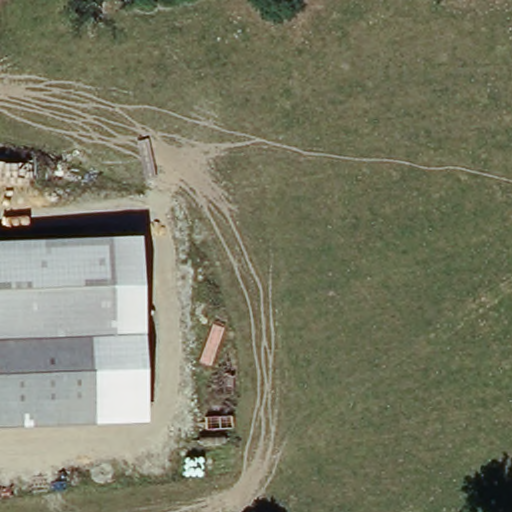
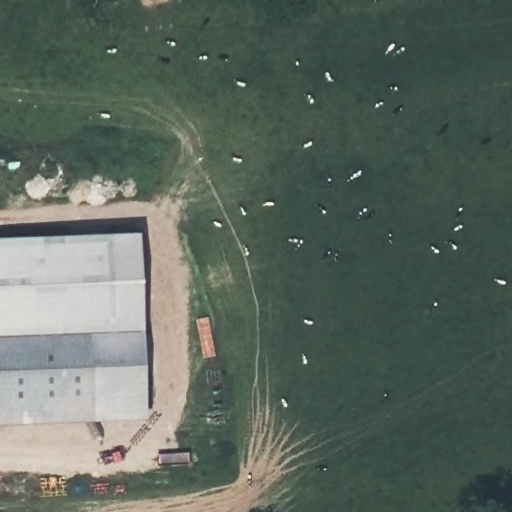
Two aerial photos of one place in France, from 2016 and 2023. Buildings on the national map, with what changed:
unchanged [(114,333),(110,234),(141,233),(148,421),(0,428),(0,340),(98,335),(114,333)]
unchanged [(114,333),(98,335),(0,340),(0,239),(110,234),(114,333)]

